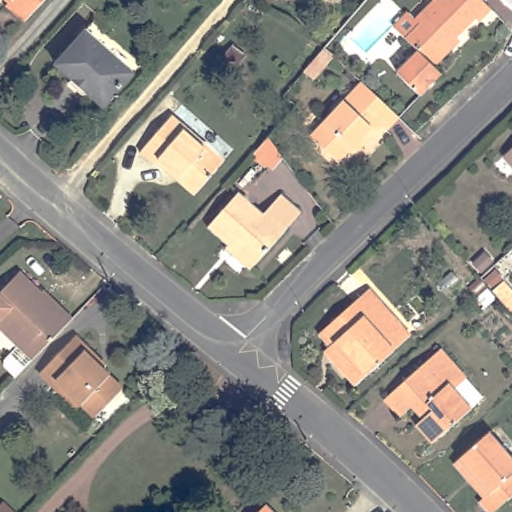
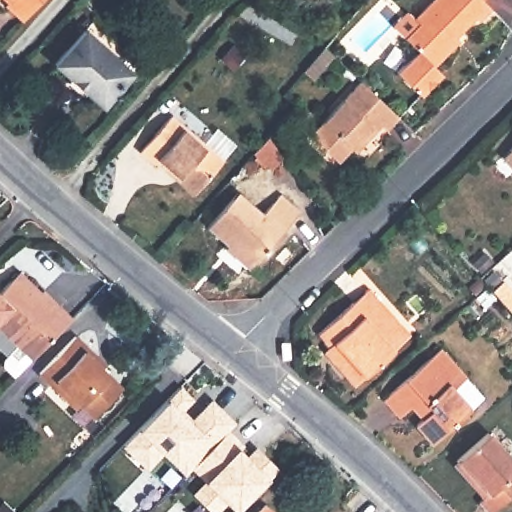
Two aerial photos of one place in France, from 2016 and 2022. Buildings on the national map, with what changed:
unchanged [(21,20),(4,3),(7,0),(39,0),(21,20)]
unchanged [(420,54),(408,43),(422,27),(418,23),(439,0),(488,0),(484,5),(492,13),(480,25),(475,22),(448,52),(451,54),(436,70),(443,77),(423,97),(400,75),(420,54)]
unchanged [(59,68),(90,33),(120,59),(89,95),(59,68)]
unchanged [(120,59),(138,75),(106,110),(89,95),(120,59)]
unchanged [(400,114),(386,128),(381,124),(363,142),(359,137),(337,159),(310,133),(360,79),(400,114)]
unchanged [(176,116),(227,161),(200,192),(177,174),(174,177),(160,165),(158,167),(143,154),(176,116)]
unchanged [(267,134),(282,155),(271,167),(252,150),(267,134)]
unchanged [(510,147),(512,145),(512,150),(510,147)]
unchanged [(242,193),(267,216),(285,196),(306,215),(254,272),(236,256),(239,253),(211,228),(242,193)]
unchanged [(10,355),(25,340),(2,317),(0,320),(0,294),(24,270),(61,306),(65,302),(76,313),(38,353),(21,371),(10,360),(10,355)]
unchanged [(352,376),(335,357),(339,354),(332,346),(334,344),(324,333),(374,288),(406,323),(416,334),(399,349),(369,376),(359,385),(352,376)]
unchanged [(93,355),(130,390),(101,419),(65,383),(60,388),(56,384),(46,375),(83,338),(91,347),(97,352),(93,355)]
unchanged [(445,349),(471,378),(458,390),(475,409),(436,444),(419,425),(427,418),(415,405),(403,415),(388,398),(445,349)]
new [(245,458),(255,448),(260,454),(277,470),(236,511),(225,500),(213,512),(210,512),(192,493),(205,481),(191,466),(185,471),(175,461),(163,449),(147,465),(123,442),(180,385),(193,397),(180,410),(191,421),(212,399),(235,421),(226,431),(241,446),(237,450),(245,458)]
unchanged [(512,456),(512,500),(498,512),(492,512),(484,502),(490,496),(461,462),(493,433),(512,456)]
unchanged [(283,512),(256,512),(269,499),(283,512)]

